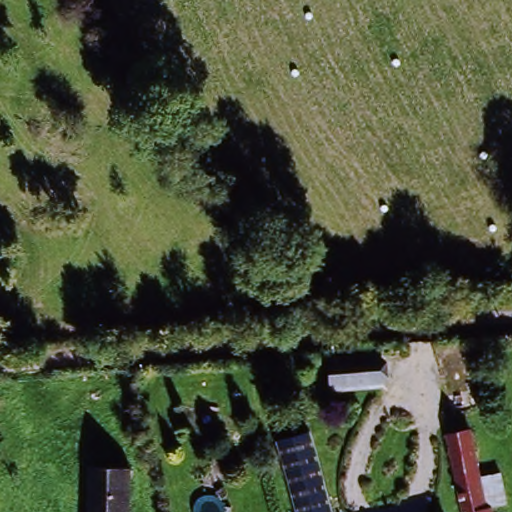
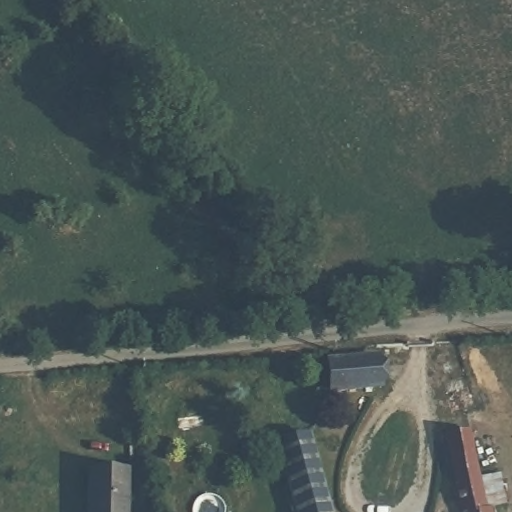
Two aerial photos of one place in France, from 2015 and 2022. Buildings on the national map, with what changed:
unchanged [(383,372),(385,394),(334,397),(333,374),(383,372)]
unchanged [(489,512),(460,512),(443,444),(471,436),(489,512)]
unchanged [(308,438),(326,512),(294,512),(276,445),(308,438)]
unchanged [(86,467),(130,467),(130,512),(86,512),(86,467)]

